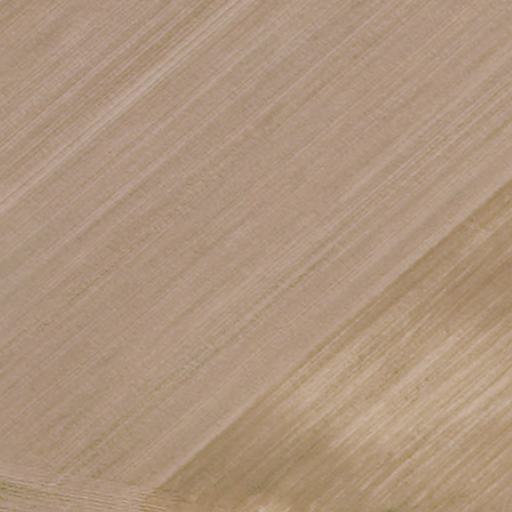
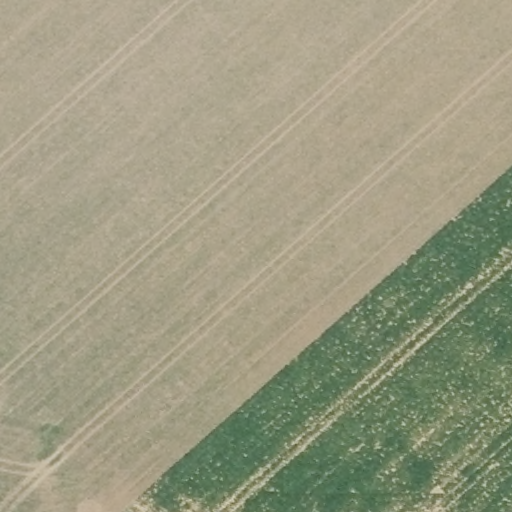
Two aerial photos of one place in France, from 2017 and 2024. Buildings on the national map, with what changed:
[]

